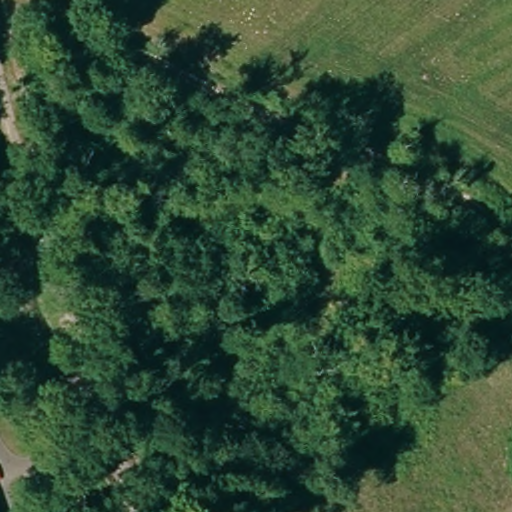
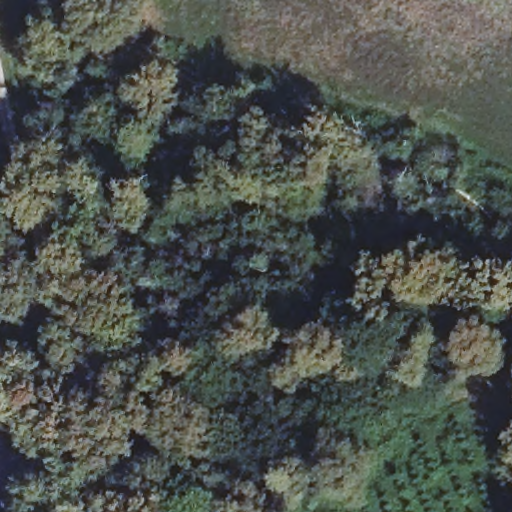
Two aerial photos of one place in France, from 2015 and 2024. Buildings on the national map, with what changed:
[]

